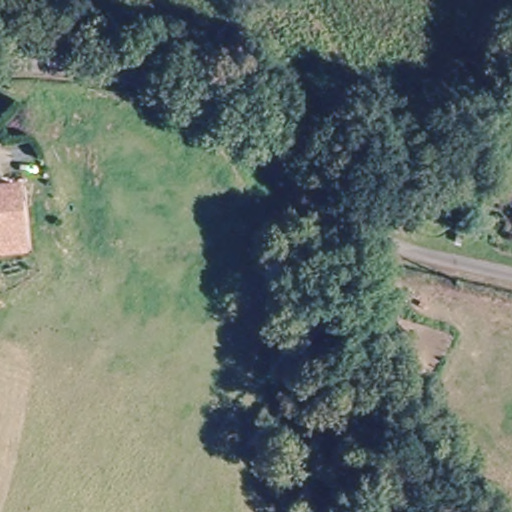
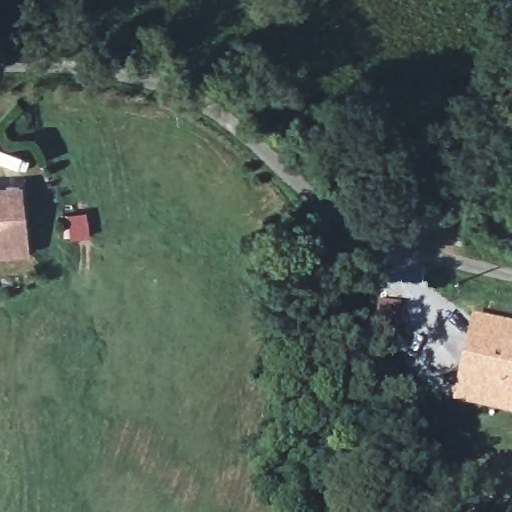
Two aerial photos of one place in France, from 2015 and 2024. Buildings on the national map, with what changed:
unchanged [(0,255),(0,189),(17,187),(22,239),(24,252),(0,255)]
unchanged [(400,345),(377,342),(379,305),(401,305),(400,345)]
new [(512,323),(512,416),(452,403),(473,315),(512,323)]

